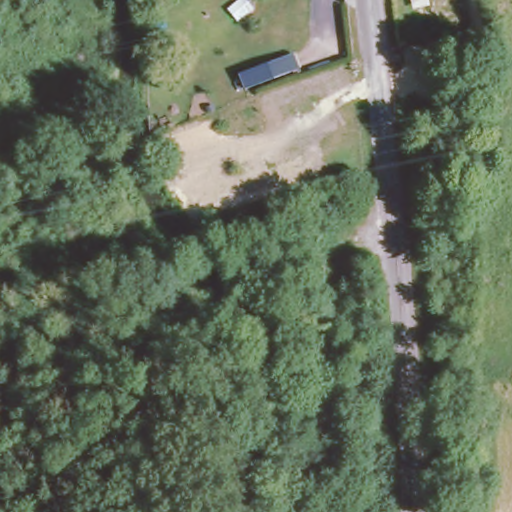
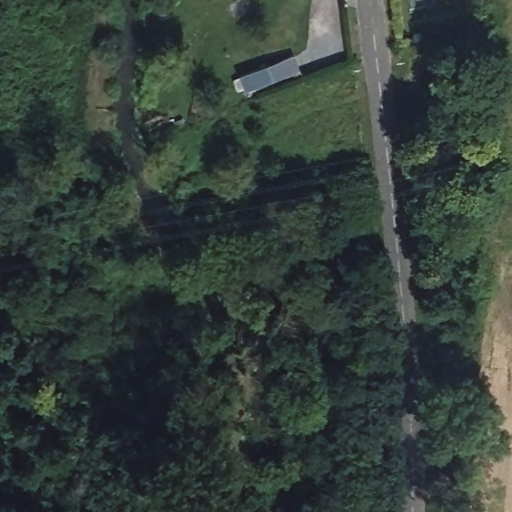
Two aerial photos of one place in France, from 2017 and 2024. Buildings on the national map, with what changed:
unchanged [(425,0),(426,11),(405,12),(404,0),(425,0)]
unchanged [(239,75),(295,55),(302,75),(249,92),(239,75)]

